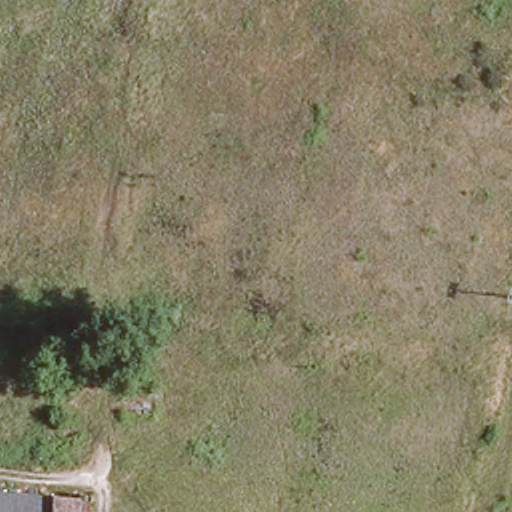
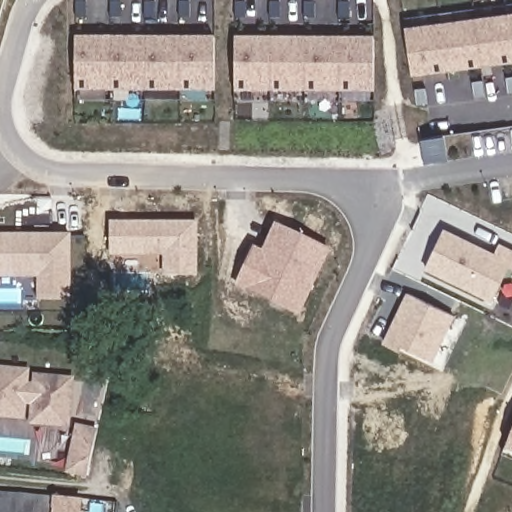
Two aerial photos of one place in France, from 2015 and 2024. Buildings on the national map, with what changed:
new [(512,61),(411,75),(403,27),(512,11),(512,61)]
new [(214,35),(215,92),(74,90),(74,36),(214,35)]
new [(374,37),(375,90),(234,90),(234,37),(374,37)]
new [(197,222),(197,276),(161,276),(163,255),(110,255),(110,220),(197,222)]
new [(274,225),(330,250),(299,316),(236,285),(254,246),(262,250),(274,225)]
new [(511,258),(493,299),(424,268),(444,228),(511,258)]
new [(70,298),(38,298),(36,278),(0,277),(0,234),(71,234),(70,298)]
new [(380,345),(405,292),(455,316),(430,367),(380,345)]
new [(69,430),(28,425),(30,405),(27,405),(25,420),(0,418),(0,367),(30,370),(29,382),(33,383),(33,375),(74,379),(69,430)]
new [(87,478),(64,474),(75,424),(97,428),(87,478)]
new [(512,434),(512,447),(508,446),(512,434)]
unchanged [(84,492),(82,512),(0,512),(0,484),(84,492)]

